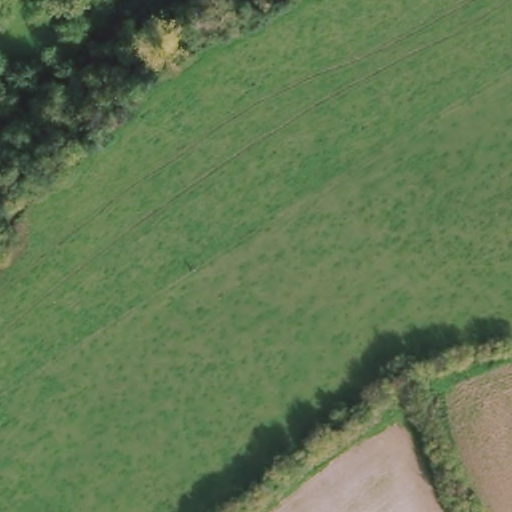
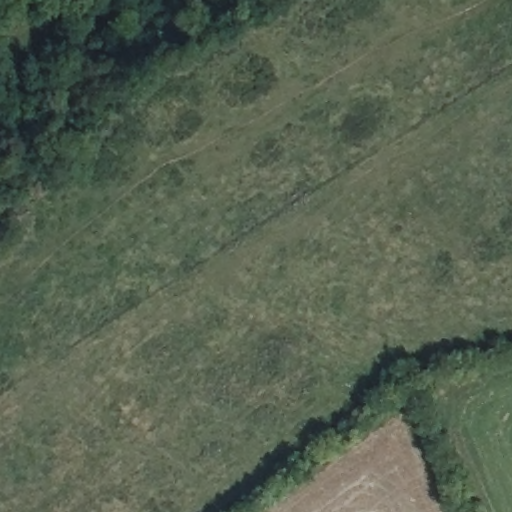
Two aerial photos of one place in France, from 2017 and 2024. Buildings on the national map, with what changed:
[]

